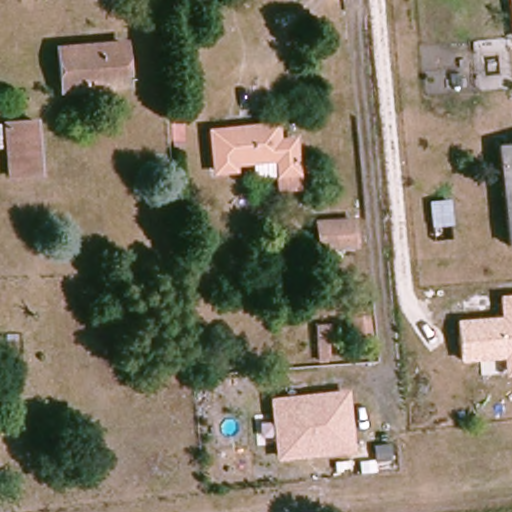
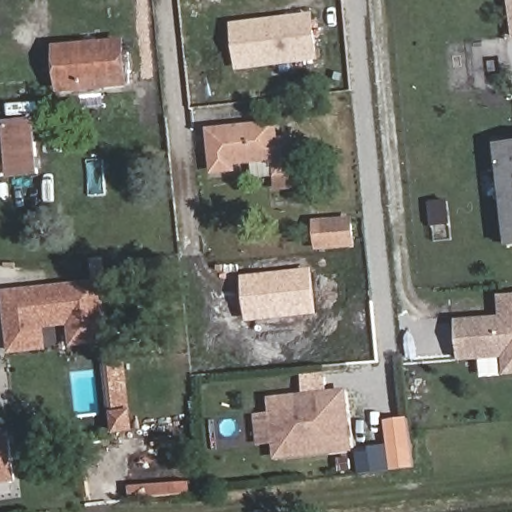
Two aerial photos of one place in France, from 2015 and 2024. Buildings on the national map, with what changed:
unchanged [(505,0),(512,0),(512,40),(509,40),(505,0)]
new [(313,13),(319,61),(237,71),(231,23),(313,13)]
unchanged [(123,81),(60,87),(56,49),(120,43),(123,81)]
new [(153,87),(157,121),(138,123),(135,89),(153,87)]
unchanged [(274,122),(277,139),(293,138),(297,194),(273,194),(269,159),(235,164),(236,173),(206,176),(201,131),(274,122)]
unchanged [(34,176),(5,178),(0,126),(29,123),(34,176)]
unchanged [(496,145),(512,144),(512,242),(505,243),(496,145)]
unchanged [(447,203),(450,241),(429,243),(424,206),(447,203)]
unchanged [(351,241),(316,244),(313,219),(348,216),(351,241)]
new [(316,316),(247,324),(242,277),(313,269),(316,316)]
new [(10,344),(4,293),(98,283),(104,335),(78,337),(75,314),(35,320),(38,342),(10,344)]
unchanged [(499,295),(512,294),(512,375),(504,376),(503,358),(461,362),(457,319),(500,315),(499,295)]
unchanged [(326,324),(326,314),(364,310),(367,339),(330,341),(329,356),(315,358),(312,326),(326,324)]
unchanged [(354,453),(275,460),(268,396),(348,389),(354,453)]
new [(374,450),(387,448),(385,419),(407,417),(414,469),(410,469),(409,466),(376,470),(374,450)]
new [(12,477),(0,479),(0,440),(7,439),(12,477)]

